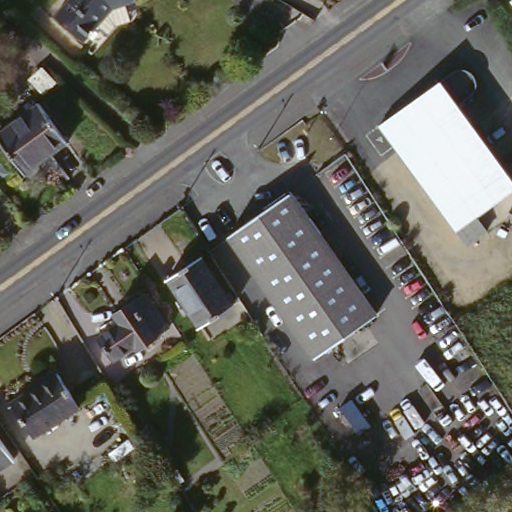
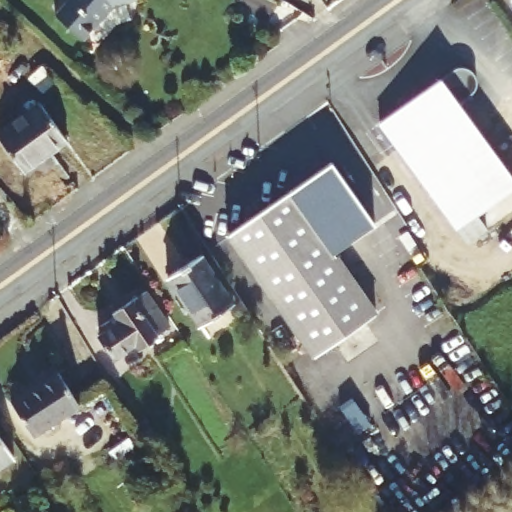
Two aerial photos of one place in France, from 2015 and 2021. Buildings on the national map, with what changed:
unchanged [(68,0),(71,2),(73,0),(123,0),(129,20),(114,26),(106,34),(96,25),(81,41),(53,17),(68,0)]
unchanged [(441,90),(444,88),(448,87),(453,87),(457,88),(460,89),(463,92),(465,96),(465,100),(465,104),(463,108),(458,113),(512,189),(512,200),(456,239),(381,133),(441,90)]
unchanged [(43,105),(71,149),(26,178),(0,140),(0,134),(43,105)]
new [(331,163),(376,226),(337,255),(291,190),(331,163)]
unchanged [(229,234),(291,190),(378,313),(316,356),(229,234)]
unchanged [(172,280),(205,258),(238,306),(205,329),(172,280)]
unchanged [(117,320),(113,314),(145,291),(169,325),(137,348),(133,342),(113,356),(98,334),(117,320)]
unchanged [(39,388),(61,373),(83,406),(61,421),(39,388)]
unchanged [(61,421),(36,438),(14,405),(39,388),(61,421)]
unchanged [(13,463),(0,473),(0,443),(13,463)]

